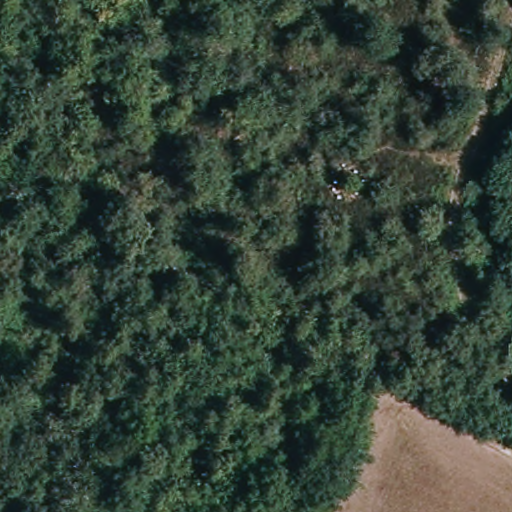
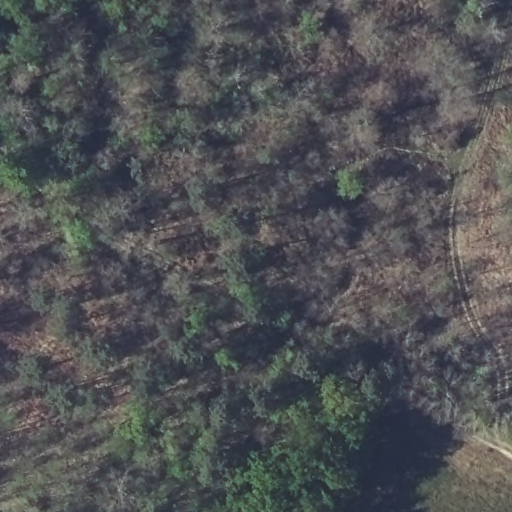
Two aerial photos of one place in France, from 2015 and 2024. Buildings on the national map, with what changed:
unchanged [(165,428),(158,440),(143,431),(151,418),(165,428)]

